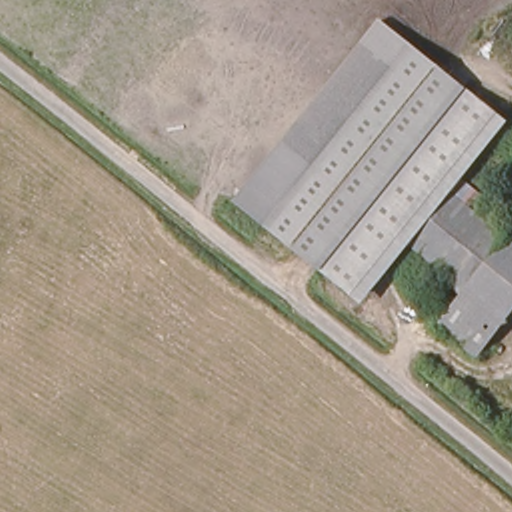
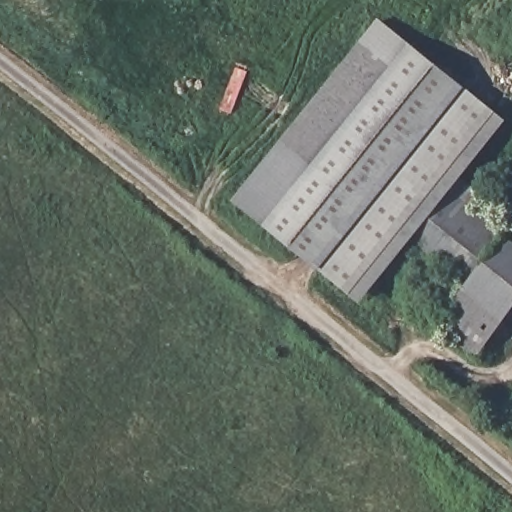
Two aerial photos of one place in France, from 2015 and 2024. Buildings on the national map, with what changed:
unchanged [(386,18),(471,86),(454,107),(324,265),(239,199),(386,18)]
unchanged [(454,107),(471,86),(508,123),(463,180),(476,192),(464,205),(448,192),(408,243),(361,305),(324,265),(454,107)]
unchanged [(471,292),(408,243),(448,192),(464,205),(511,243),(471,292)]
unchanged [(443,330),(471,292),(511,243),(512,244),(512,315),(479,357),(443,330)]

